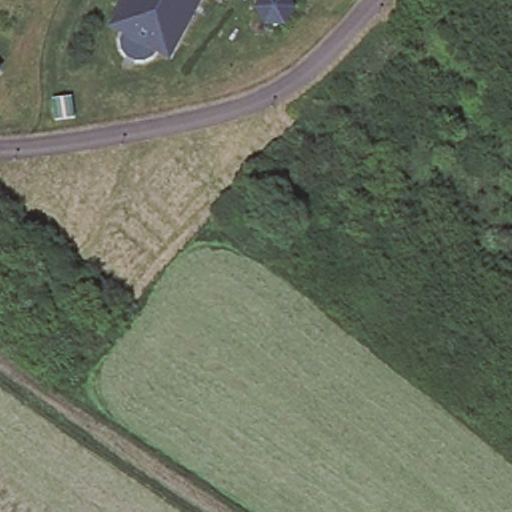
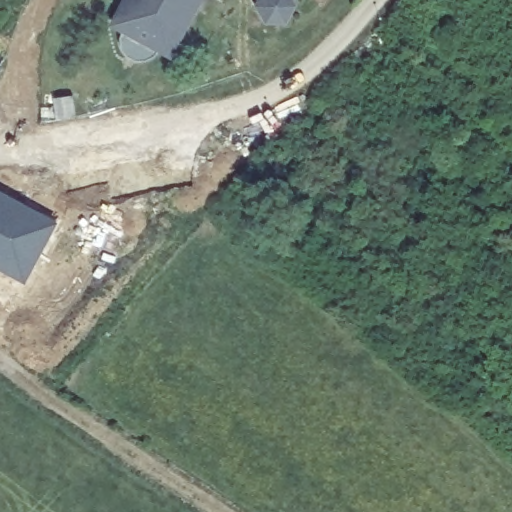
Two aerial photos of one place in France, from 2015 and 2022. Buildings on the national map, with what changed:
unchanged [(173,45),(168,52),(160,47),(153,55),(145,59),(135,59),(126,55),(120,47),(119,37),(122,27),(113,22),(117,15),(115,13),(121,0),(200,0),(175,46),(173,45)]
unchanged [(285,22),(265,22),(254,4),(257,0),(293,0),(295,4),(285,22)]
new [(23,282),(0,269),(0,194),(55,225),(23,282)]

